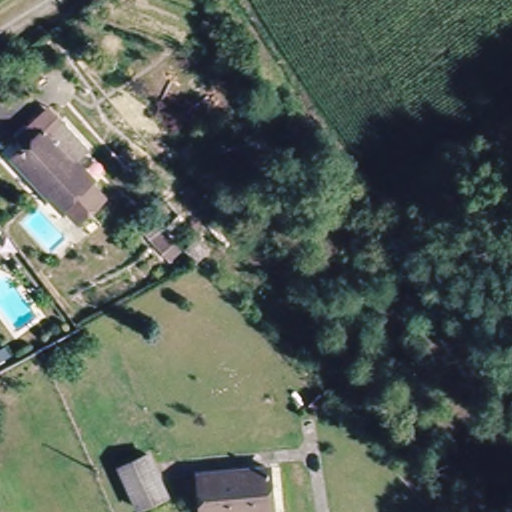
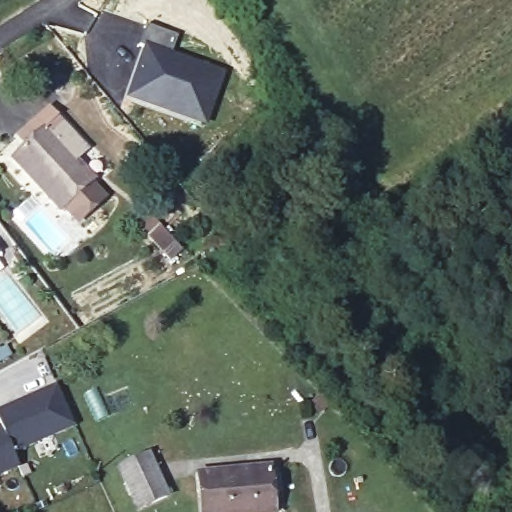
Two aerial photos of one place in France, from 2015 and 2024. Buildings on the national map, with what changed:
new [(166,108),(128,95),(138,66),(145,47),(137,45),(145,24),(176,35),(169,54),(220,72),(207,109),(203,121),(166,108)]
unchanged [(94,174),(60,206),(12,154),(26,141),(18,132),(50,102),(65,117),(88,143),(76,154),(94,174)]
unchanged [(175,242),(166,252),(149,235),(159,226),(175,242)]
unchanged [(0,362),(0,351),(6,347),(11,355),(0,362)]
new [(0,424),(0,410),(56,384),(74,424),(13,451),(19,465),(0,474),(0,426),(1,425),(0,424)]
unchanged [(330,404),(319,414),(310,405),(320,394),(330,404)]
unchanged [(167,495),(138,509),(120,468),(149,454),(167,495)]
unchanged [(202,512),(199,474),(270,467),(274,512),(202,512)]

